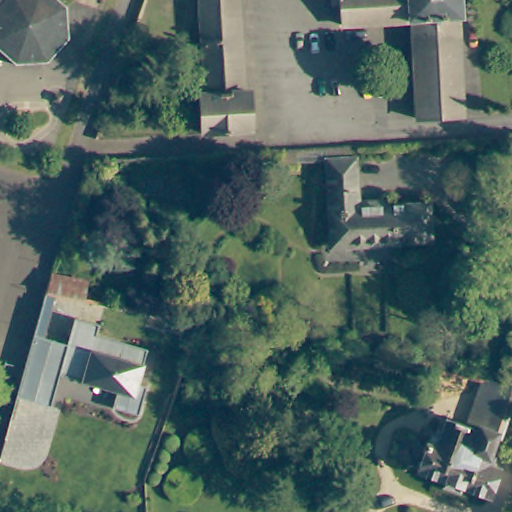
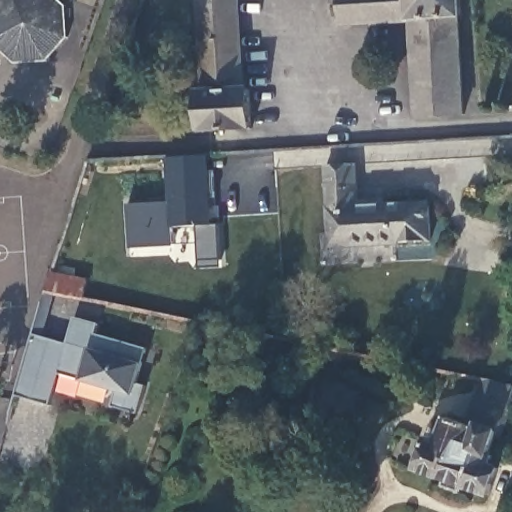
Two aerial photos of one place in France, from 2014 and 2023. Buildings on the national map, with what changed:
unchanged [(66,9),(67,39),(49,60),(15,62),(0,49),(0,0),(56,0),(66,9)]
unchanged [(244,92),(251,92),(253,131),(203,135),(200,95),(206,95),(201,0),(240,0),(244,92)]
unchanged [(464,17),(459,18),(463,115),(418,118),(413,21),(337,25),(336,5),(333,5),(333,0),(463,0),(464,17)]
unchanged [(360,152),(363,209),(388,207),(389,211),(433,209),(435,246),(336,252),(330,168),(301,168),(300,156),(360,152)]
new [(204,201),(210,200),(212,226),(206,226),(220,225),(222,262),(199,264),(196,229),(172,230),(174,248),(130,251),(127,209),(170,205),(169,176),(168,159),(207,157),(208,173),(213,173),(215,200),(204,201)]
unchanged [(71,317),(95,324),(92,335),(143,348),(133,383),(143,386),(135,414),(109,407),(114,390),(56,374),(47,406),(13,396),(20,374),(31,335),(43,292),(49,275),(85,281),(82,300),(51,294),(39,337),(64,344),(71,317)]
unchanged [(49,275),(85,281),(82,300),(51,294),(43,292),(49,275)]
unchanged [(421,455),(422,451),(424,451),(428,441),(433,443),(440,424),(473,436),(491,387),(505,390),(512,391),(512,420),(506,420),(495,448),(490,447),(484,463),(489,465),(485,474),(494,478),(484,505),(456,495),(454,501),(438,495),(440,489),(413,477),(421,455)]

